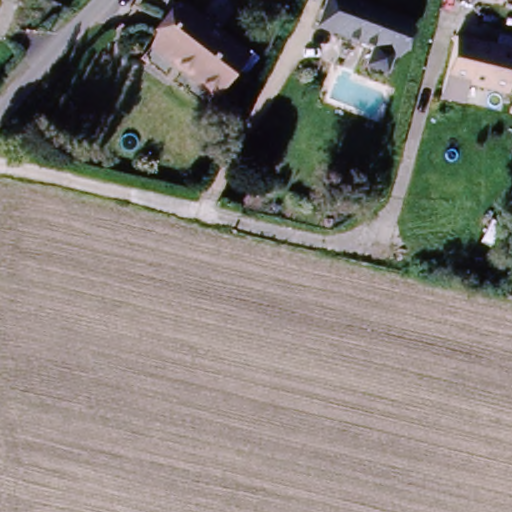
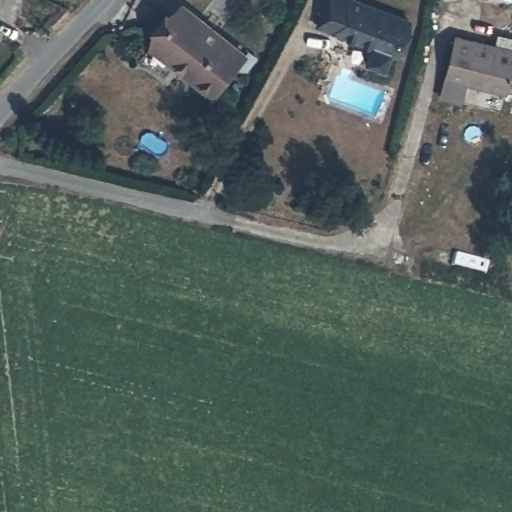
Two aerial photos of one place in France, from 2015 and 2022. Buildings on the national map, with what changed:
unchanged [(181,0),(183,0),(246,51),(212,96),(145,44),(181,0)]
unchanged [(414,24),(400,61),(395,59),(390,74),(372,67),(377,53),(325,32),(337,0),(357,0),(356,2),(414,24)]
unchanged [(497,38),(512,41),(512,97),(505,96),(505,100),(466,90),(462,108),(440,101),(445,85),(456,40),(495,49),(497,38)]

